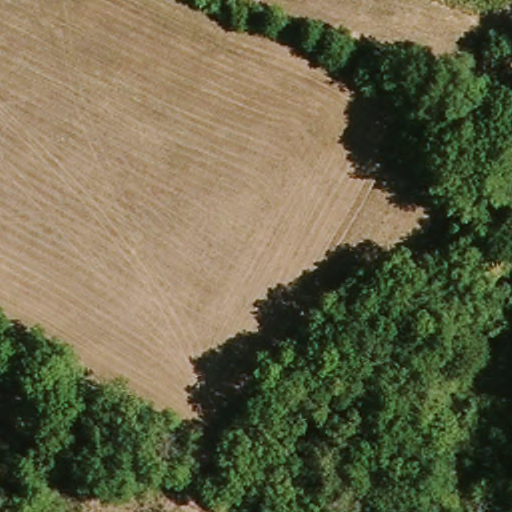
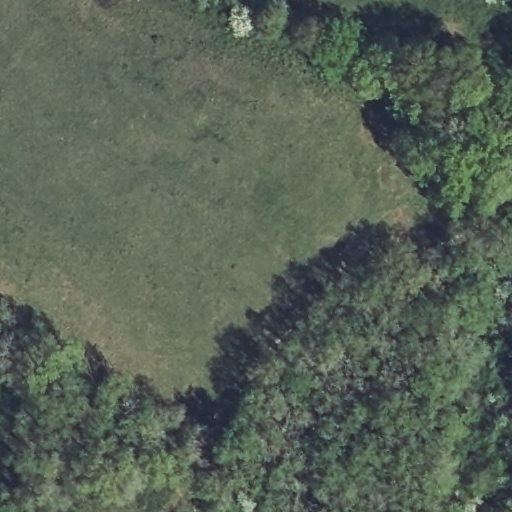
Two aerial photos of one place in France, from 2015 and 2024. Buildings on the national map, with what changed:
[]

